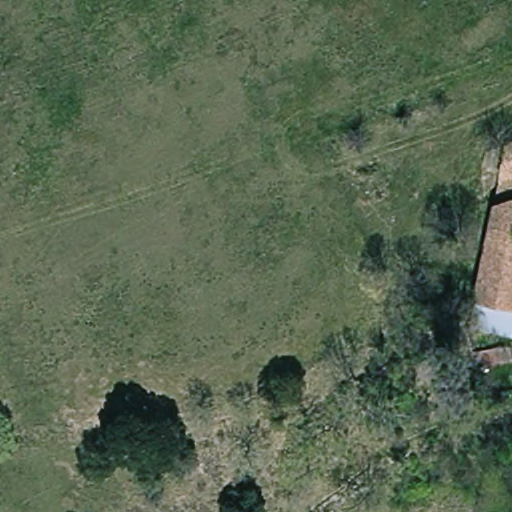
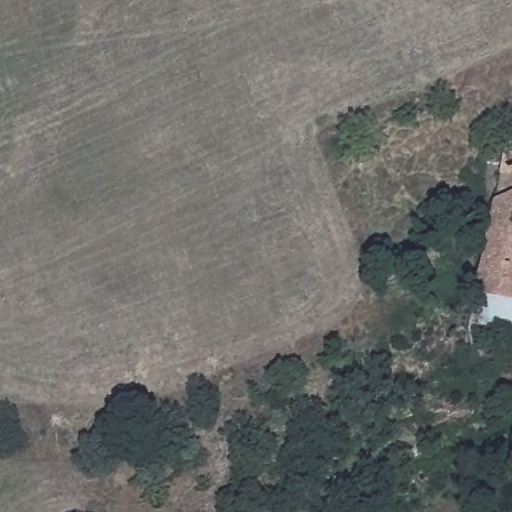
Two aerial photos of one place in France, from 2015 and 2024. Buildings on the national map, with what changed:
unchanged [(481,162),(484,151),(512,140),(512,165),(500,166),(481,162)]
unchanged [(496,209),(512,203),(512,308),(477,301),(496,209)]
unchanged [(473,328),(512,325),(512,350),(475,352),(473,328)]

